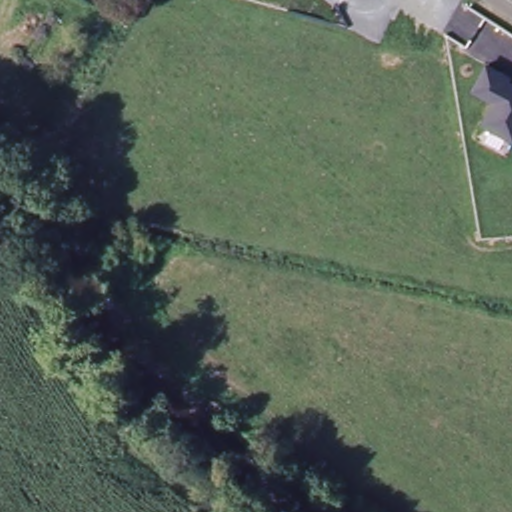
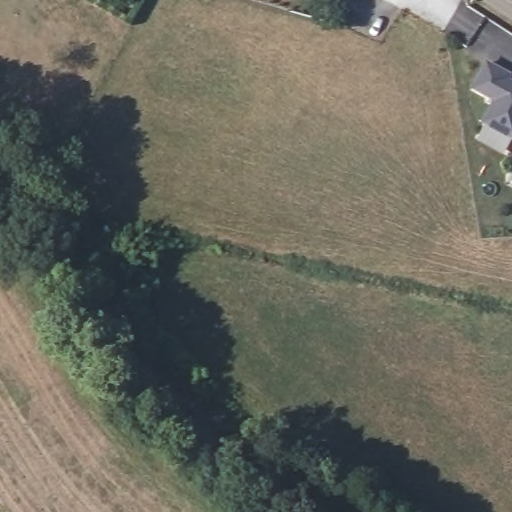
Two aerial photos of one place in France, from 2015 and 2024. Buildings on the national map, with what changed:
unchanged [(497,101),(475,90),(488,65),(511,77),(509,81),(512,83),(512,138),(485,124),(497,101)]

